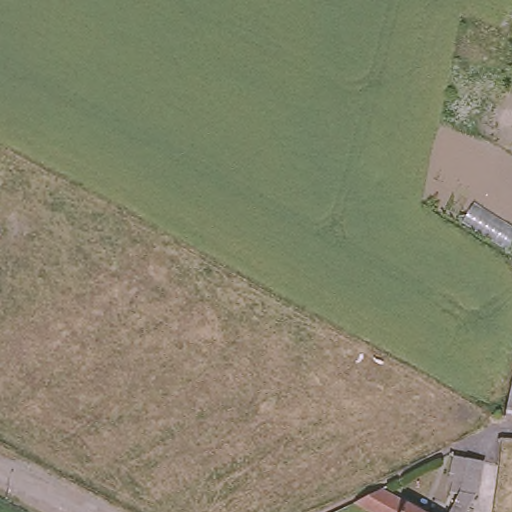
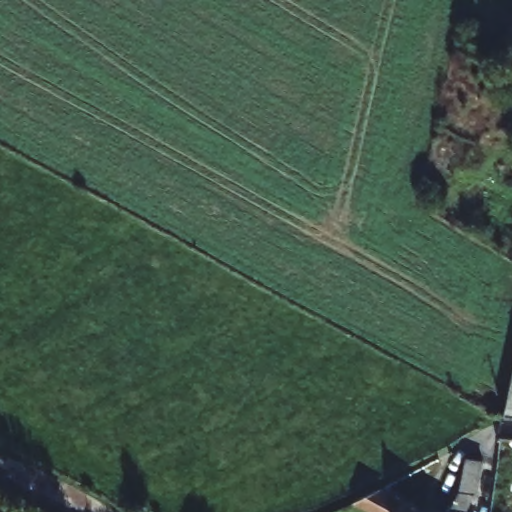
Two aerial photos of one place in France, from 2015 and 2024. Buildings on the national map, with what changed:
unchanged [(504,418),(512,374),(512,419),(504,418)]
unchanged [(465,485),(466,480),(452,476),(457,453),(471,456),(487,460),(481,493),(477,492),(467,512),(450,512),(465,485)]
unchanged [(357,500),(385,487),(431,512),(377,512),(357,500)]

